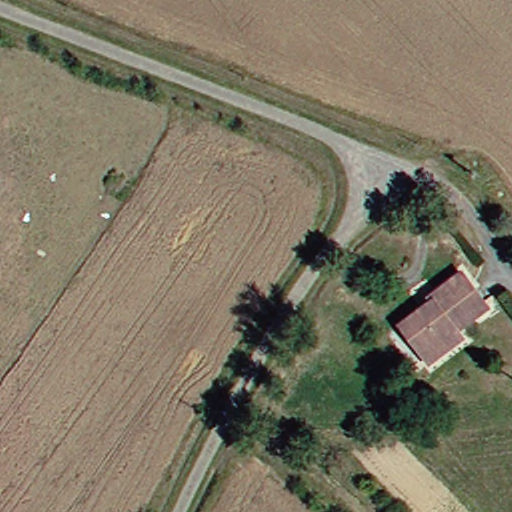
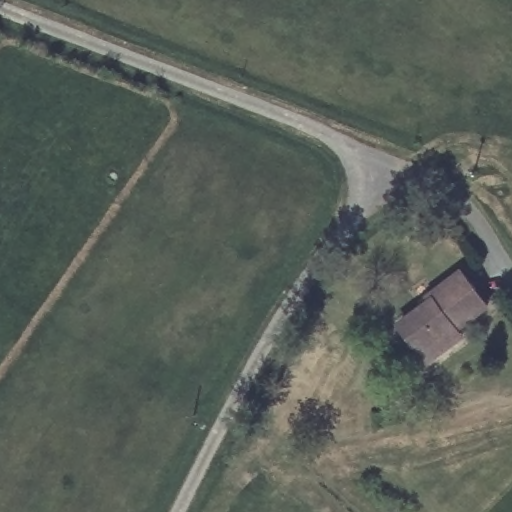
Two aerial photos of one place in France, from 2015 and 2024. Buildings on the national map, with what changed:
unchanged [(423,362),(417,351),(398,323),(430,301),(426,296),(460,272),(485,308),(453,330),(459,339),(423,362)]

